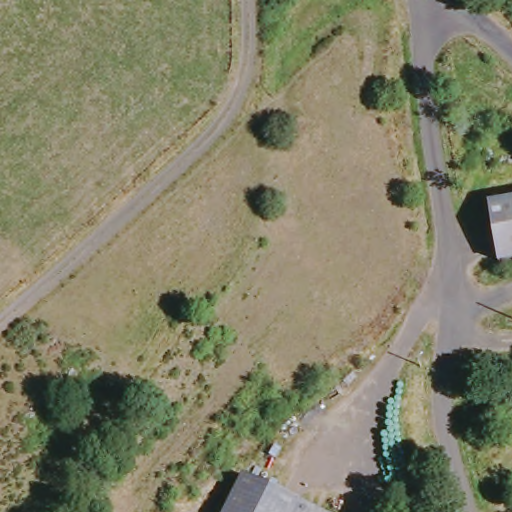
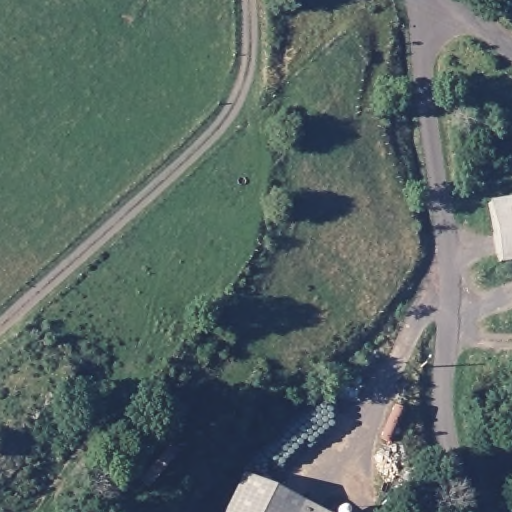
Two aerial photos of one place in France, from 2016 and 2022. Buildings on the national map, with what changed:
unchanged [(496,263),(483,203),(512,199),(512,261),(496,263)]
unchanged [(222,512),(241,474),(317,512),(222,512)]

